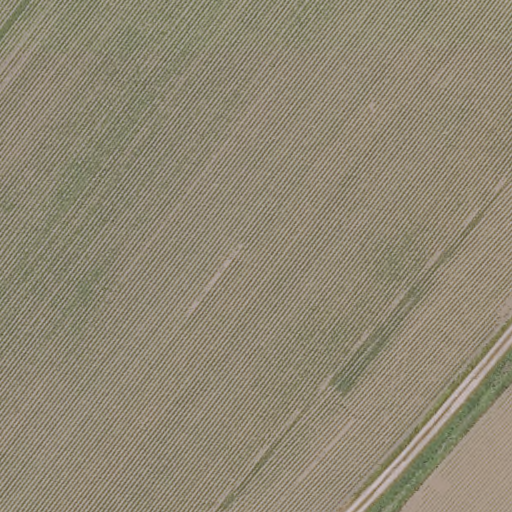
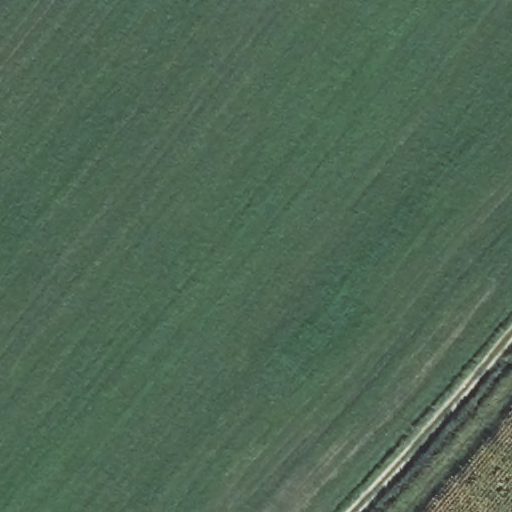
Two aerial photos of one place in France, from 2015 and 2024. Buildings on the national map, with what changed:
[]

